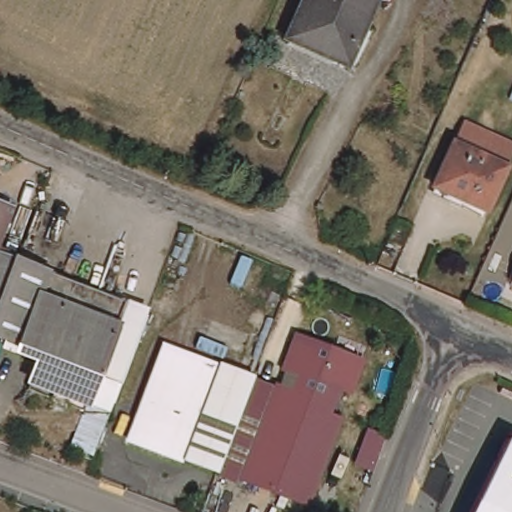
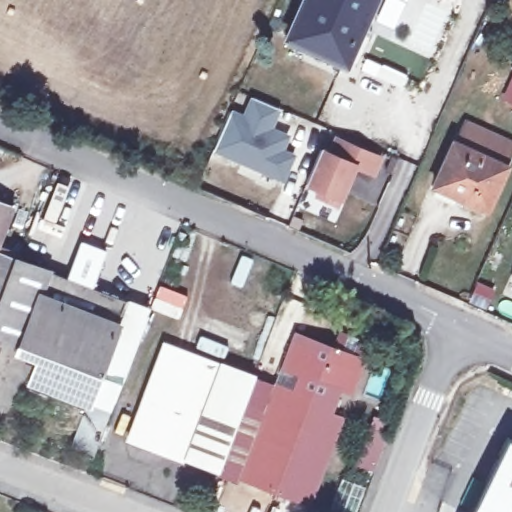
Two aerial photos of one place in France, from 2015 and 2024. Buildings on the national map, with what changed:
unchanged [(291,37),(307,0),(378,0),(350,65),(291,37)]
new [(231,109),(243,114),(249,96),(281,110),(274,127),(291,134),(284,150),(296,155),(284,182),(213,152),(231,109)]
unchanged [(512,96),(512,98),(511,98),(512,96)]
new [(455,142),(464,119),(512,139),(512,149),(506,165),(455,142)]
new [(319,146),(328,150),(334,135),(383,155),(374,176),(356,167),(343,200),(341,200),(339,206),(313,196),(316,190),(304,185),(319,146)]
unchanged [(509,166),(489,210),(468,200),(469,198),(437,184),(455,142),(509,166)]
unchanged [(0,241),(0,202),(13,207),(0,241)]
unchanged [(0,310),(0,253),(19,260),(0,310)]
unchanged [(36,375),(43,355),(23,346),(23,345),(0,336),(0,310),(19,260),(127,301),(91,396),(36,375)]
unchanged [(359,355),(346,386),(334,381),(324,408),(336,413),(304,500),(238,475),(275,379),(294,386),(299,372),(280,365),(293,330),(359,355)]
unchanged [(256,377),(253,382),(236,427),(220,470),(129,435),(164,341),(256,377)]
unchanged [(512,442),(512,512),(469,512),(504,437),(512,442)]

